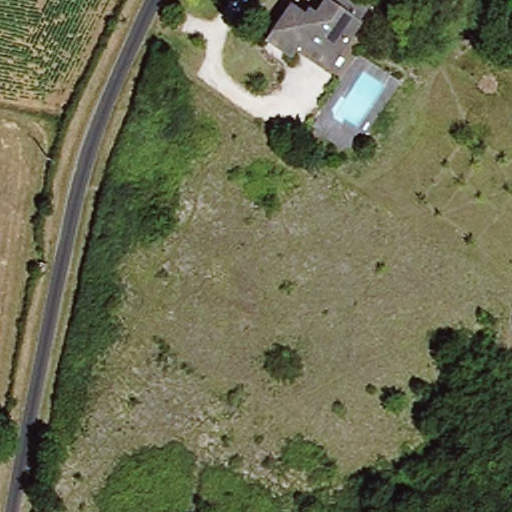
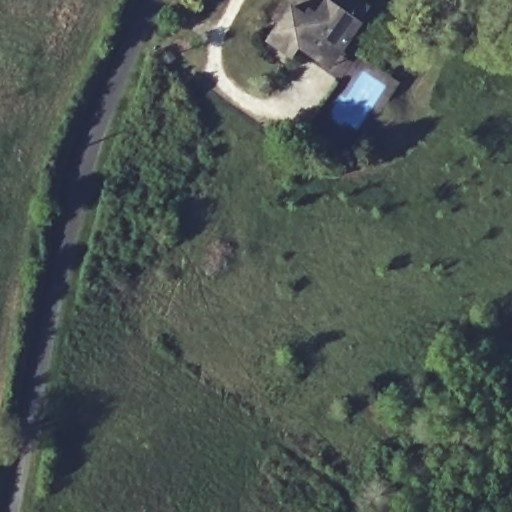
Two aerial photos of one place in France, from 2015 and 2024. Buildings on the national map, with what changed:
unchanged [(275,46),(268,41),(275,31),(292,6),(310,19),(324,0),(326,0),(328,1),(329,0),(355,0),(370,9),(361,23),(344,47),(329,69),(299,47),(291,57),(275,46)]
unchanged [(382,72),(376,81),(363,72),(370,64),(382,72)]

